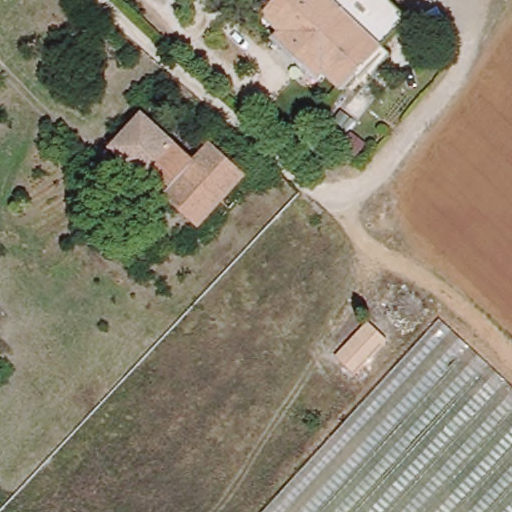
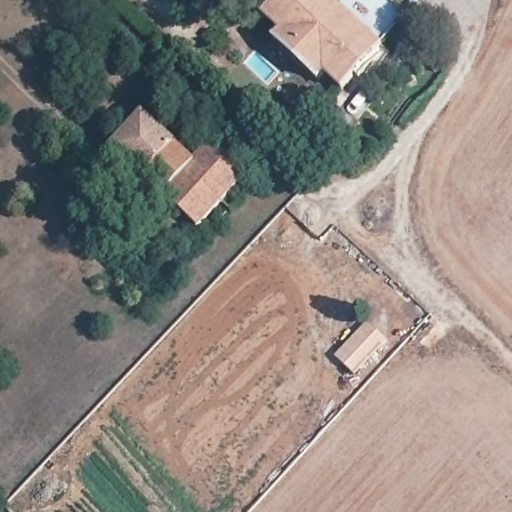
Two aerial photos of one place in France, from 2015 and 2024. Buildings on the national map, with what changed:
unchanged [(286,31),(269,16),(283,0),(394,0),(410,15),(347,85),(330,70),(322,77),(279,39),(286,31)]
unchanged [(108,145),(140,110),(190,156),(207,137),(247,174),(198,226),(108,145)]
unchanged [(394,341),(358,384),(331,356),(371,317),(394,341)]
demolished [(512,394),(512,512),(265,512),(438,325),(512,394)]

